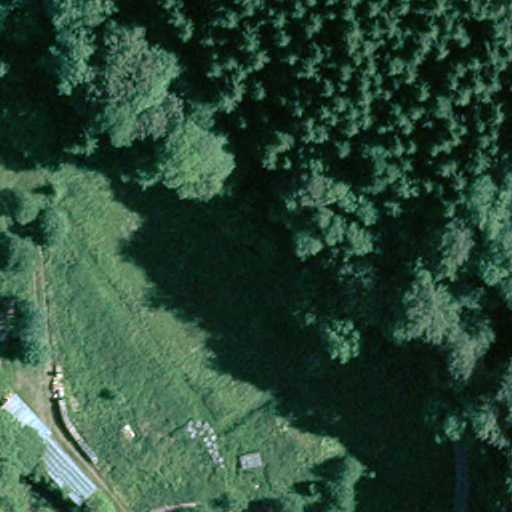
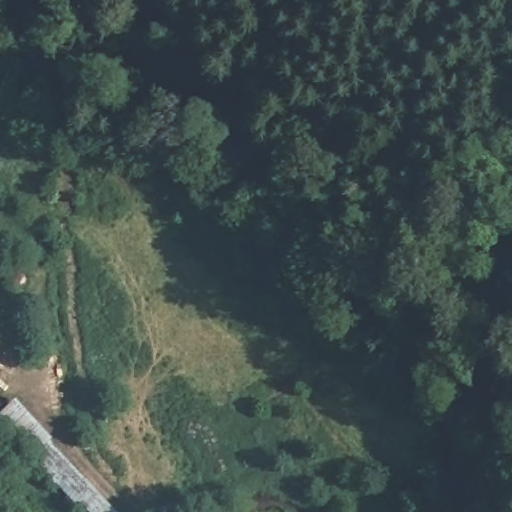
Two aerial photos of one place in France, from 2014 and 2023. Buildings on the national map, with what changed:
unchanged [(99,490),(79,507),(30,457),(26,461),(0,435),(0,415),(15,399),(99,490)]

